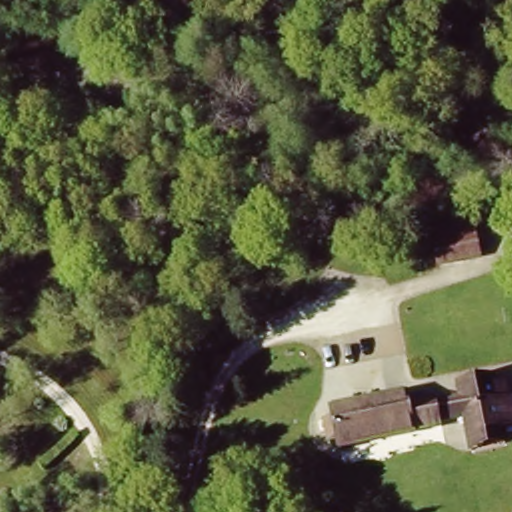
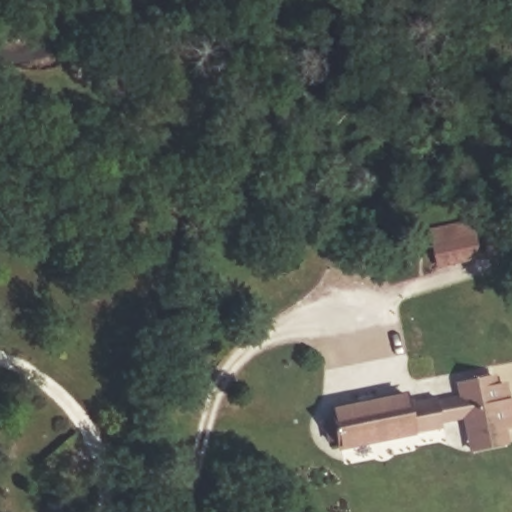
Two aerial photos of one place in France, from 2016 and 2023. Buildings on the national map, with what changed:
unchanged [(438,267),(430,232),(470,220),(478,256),(438,267)]
unchanged [(505,395),(512,393),(512,437),(510,438),(512,446),(512,454),(470,460),(457,389),(502,387),(505,395)]
unchanged [(332,412),(410,398),(410,416),(430,409),(432,432),(414,435),(415,447),(343,460),(332,412)]

